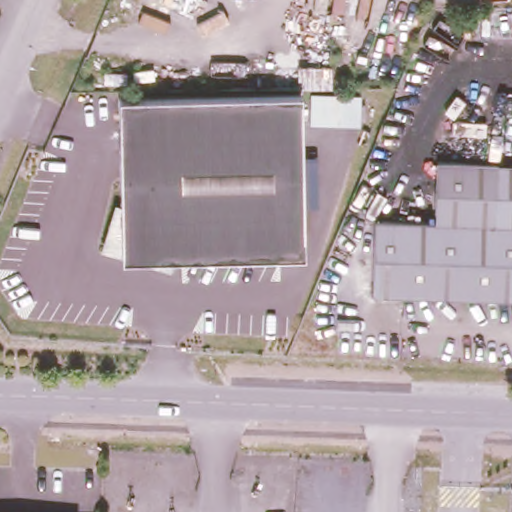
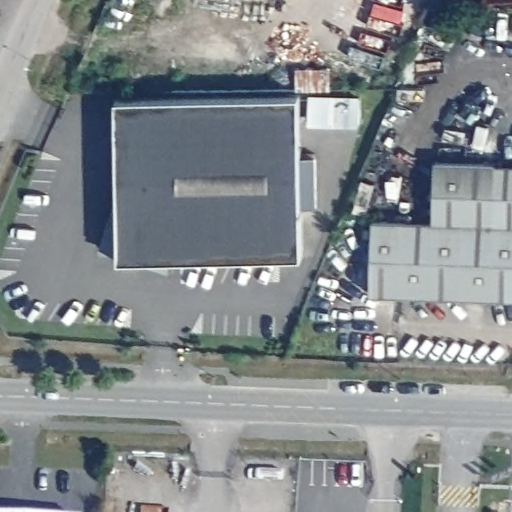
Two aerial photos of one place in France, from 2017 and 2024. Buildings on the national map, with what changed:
unchanged [(170,267),(135,256),(120,258),(120,251),(109,247),(115,207),(120,207),(119,96),(299,92),(304,251),(174,255),(170,267)]
unchanged [(362,219),(432,222),(434,162),(495,165),(493,225),(512,225),(512,300),(358,293),(362,219)]
unchanged [(512,225),(493,225),(495,165),(512,165),(512,225)]

